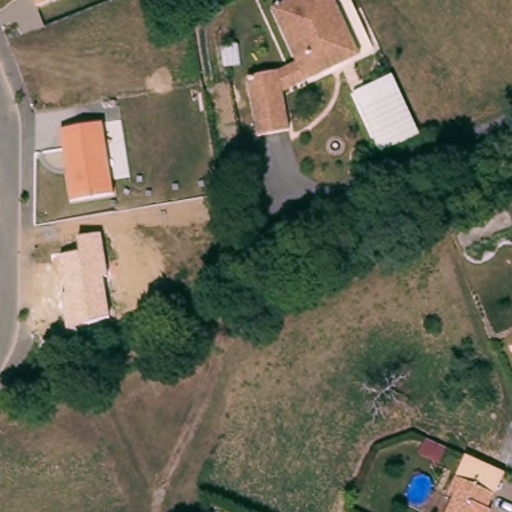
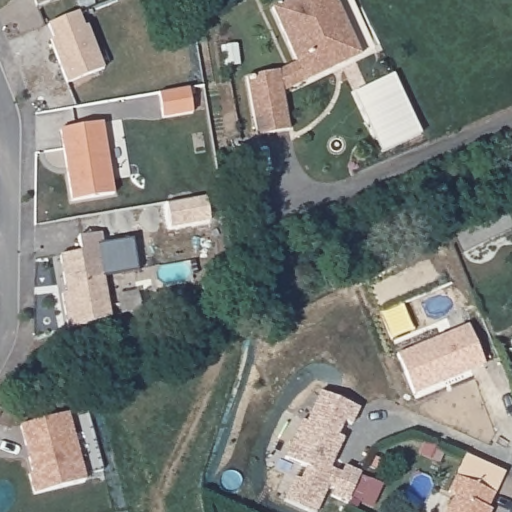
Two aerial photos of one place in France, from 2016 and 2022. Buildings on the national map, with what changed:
unchanged [(36,5),(34,0),(52,0),(36,5)]
unchanged [(294,126),(262,131),(252,72),(283,66),(301,59),(277,5),(287,0),(359,0),(379,46),(365,52),(352,59),(287,87),(294,126)]
new [(65,15),(71,30),(74,29),(91,71),(55,86),(38,43),(41,41),(36,27),(65,15)]
unchanged [(399,75),(426,134),(387,151),(360,92),(399,75)]
new [(171,92),(175,116),(145,121),(141,96),(171,92)]
unchanged [(61,130),(103,124),(113,195),(72,201),(61,130)]
unchanged [(61,295),(66,294),(61,255),(80,252),(78,238),(103,235),(108,278),(104,279),(109,320),(66,332),(61,295)]
new [(483,366),(414,393),(397,352),(467,323),(483,366)]
new [(353,424),(345,421),(334,446),(338,449),(330,470),(341,473),(345,466),(361,472),(350,503),(333,498),(337,487),(330,485),(319,508),(287,497),(295,476),(302,481),(309,466),(287,458),(303,420),(308,422),(323,390),(359,408),(353,424)]
new [(90,496),(39,508),(34,488),(38,487),(35,471),(32,459),(27,439),(75,428),(90,496)]
unchanged [(444,512),(451,496),(446,493),(455,476),(493,491),(484,512),(444,512)]

